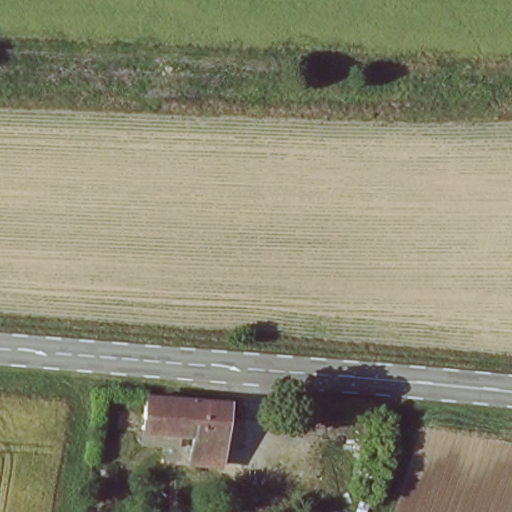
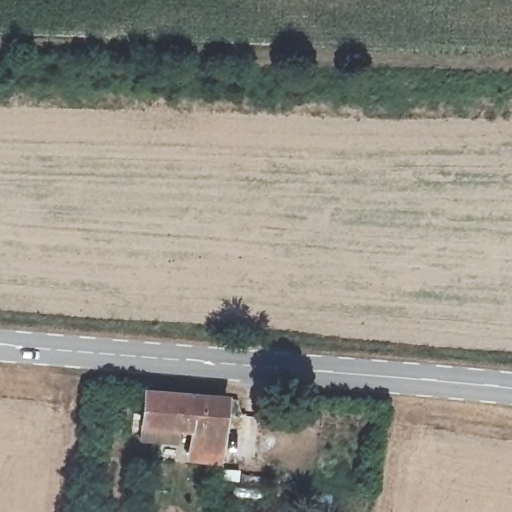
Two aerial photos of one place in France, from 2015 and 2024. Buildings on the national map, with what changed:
unchanged [(217,461),(188,457),(191,419),(158,417),(162,391),(224,396),(217,461)]

